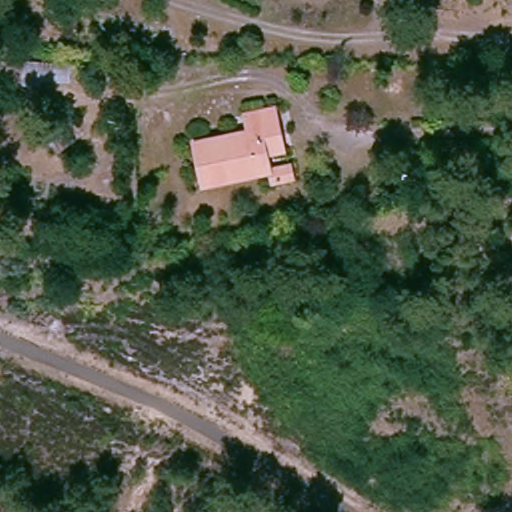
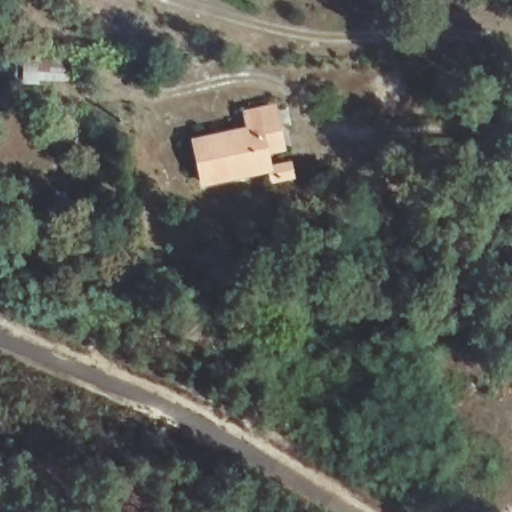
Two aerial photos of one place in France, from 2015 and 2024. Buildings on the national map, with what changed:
unchanged [(73,84),(43,82),(41,88),(22,87),(23,59),(75,60),(73,84)]
unchanged [(296,184),(270,188),(269,179),(262,180),(198,190),(192,140),(246,131),(244,117),(278,113),(281,139),(284,159),(291,158),(296,184)]

